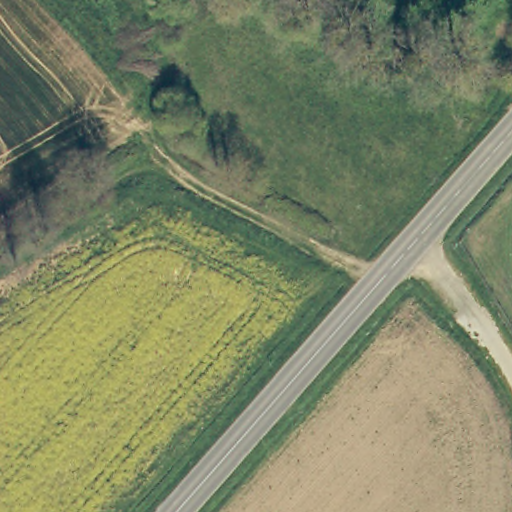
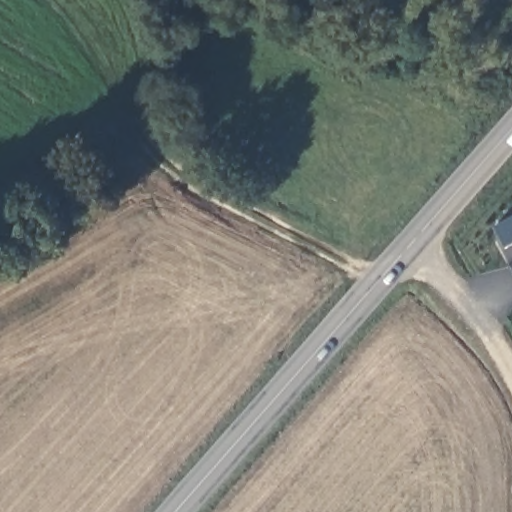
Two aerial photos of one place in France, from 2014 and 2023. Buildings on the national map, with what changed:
new [(512,218),(512,241),(503,245),(494,228),(512,218)]

